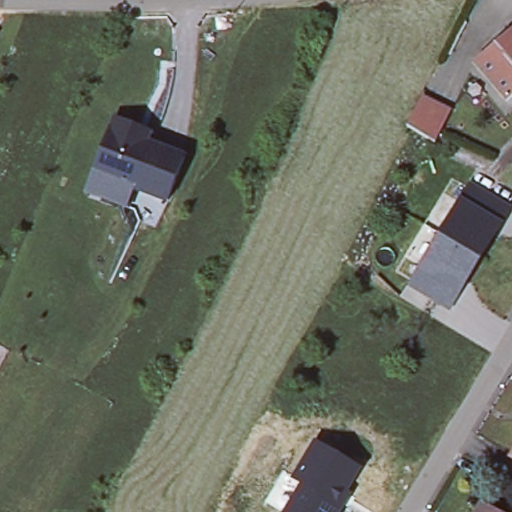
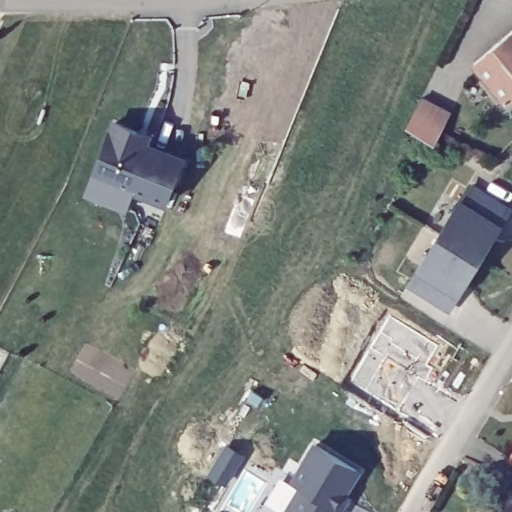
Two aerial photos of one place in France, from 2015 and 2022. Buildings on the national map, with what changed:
unchanged [(507,101),(474,62),(512,29),(512,97),(507,101)]
unchanged [(406,126),(421,98),(451,112),(435,143),(406,126)]
unchanged [(113,199),(93,191),(100,173),(121,120),(143,129),(155,133),(151,143),(190,158),(173,201),(140,188),(132,207),(113,199)]
unchanged [(460,203),(470,187),(509,210),(500,226),(459,293),(450,308),(411,285),(420,269),(460,203)]
new [(437,345),(425,366),(431,369),(425,381),(417,378),(400,412),(350,385),(389,317),(437,345)]
unchanged [(343,512),(284,512),(283,511),(301,482),(293,477),(315,440),(362,469),(350,493),(352,495),(343,512)]
new [(244,460),(225,493),(208,483),(226,449),(244,460)]
unchanged [(483,509),(488,511),(490,512),(481,512),(483,509)]

